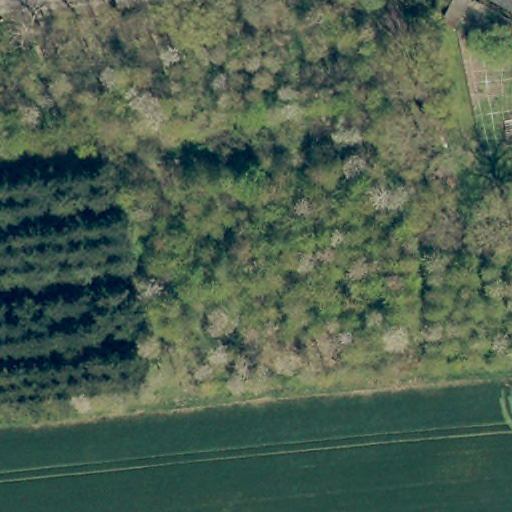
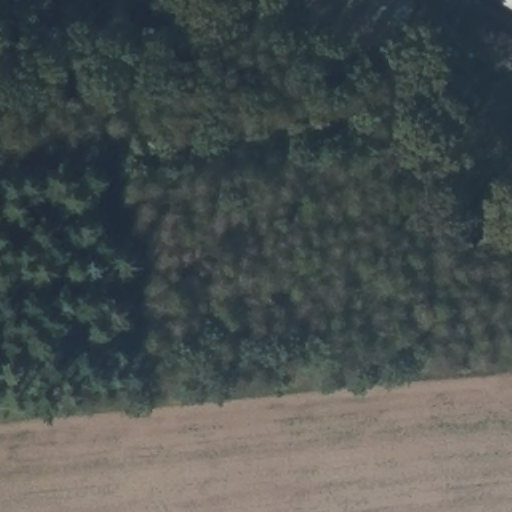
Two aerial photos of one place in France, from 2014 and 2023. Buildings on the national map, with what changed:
unchanged [(512,0),(512,17),(479,0),(512,0)]

